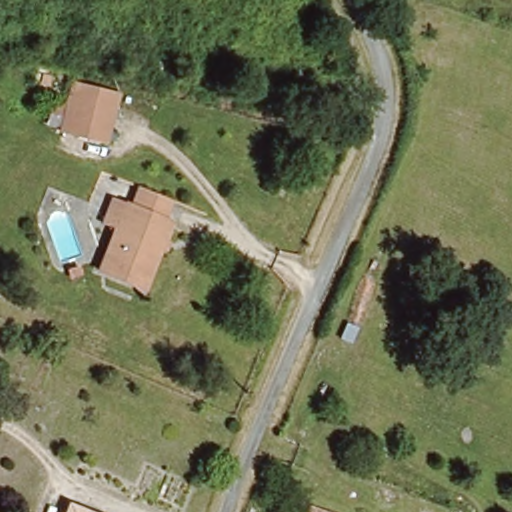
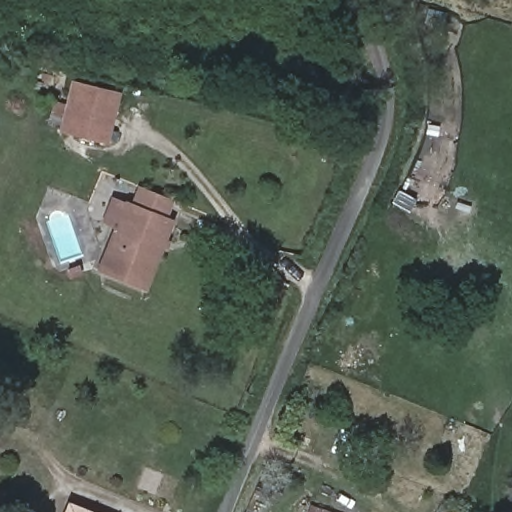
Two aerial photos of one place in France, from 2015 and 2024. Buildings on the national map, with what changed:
unchanged [(100,141),(61,129),(76,82),(115,95),(100,141)]
unchanged [(130,202),(167,214),(160,233),(164,235),(145,287),(96,268),(106,241),(95,237),(104,212),(115,215),(124,217),(130,202)]
unchanged [(65,506),(84,512),(63,512),(65,506)]

